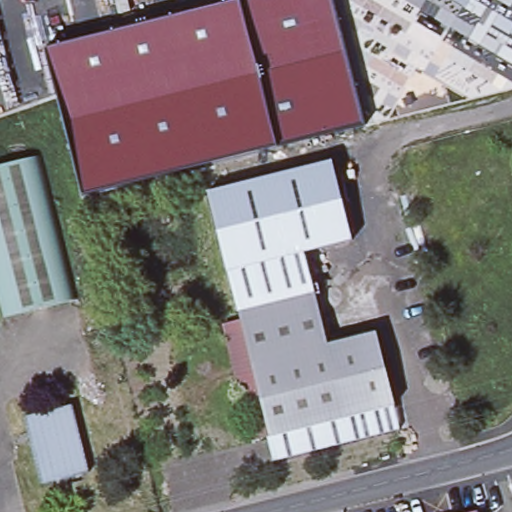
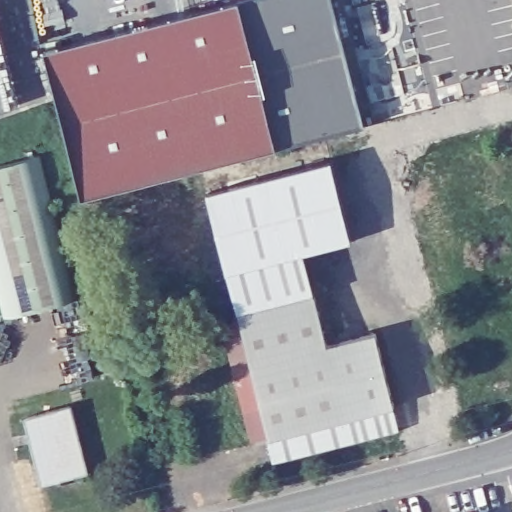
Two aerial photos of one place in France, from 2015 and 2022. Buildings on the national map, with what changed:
unchanged [(239,0),(332,0),(364,124),(277,145),(83,194),(46,50),(239,0)]
unchanged [(73,299),(0,319),(0,163),(35,154),(73,299)]
unchanged [(210,192),(332,161),(353,240),(306,252),(316,291),(241,312),(210,192)]
unchanged [(274,436),(243,320),(241,312),(316,291),(331,343),(358,337),(378,408),(274,436)]
unchanged [(255,441),(225,325),(243,320),(274,436),(255,441)]
unchanged [(401,402),(378,408),(358,337),(381,331),(401,402)]
unchanged [(407,427),(274,461),(269,437),(274,436),(378,408),(401,402),(407,427)]
unchanged [(85,471),(39,483),(21,415),(68,403),(85,471)]

